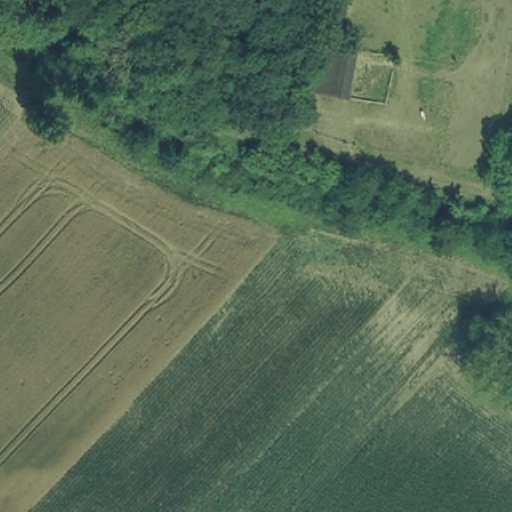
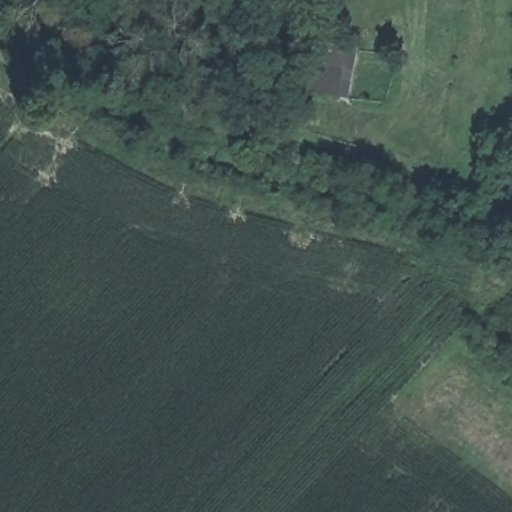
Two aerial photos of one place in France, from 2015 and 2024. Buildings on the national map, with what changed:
unchanged [(344,94),(310,87),(316,39),(359,45),(344,94)]

